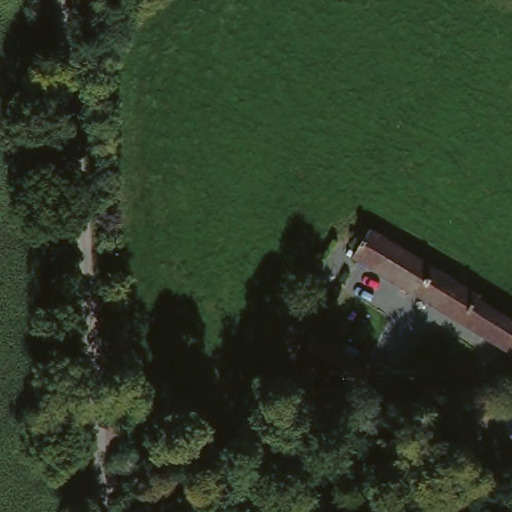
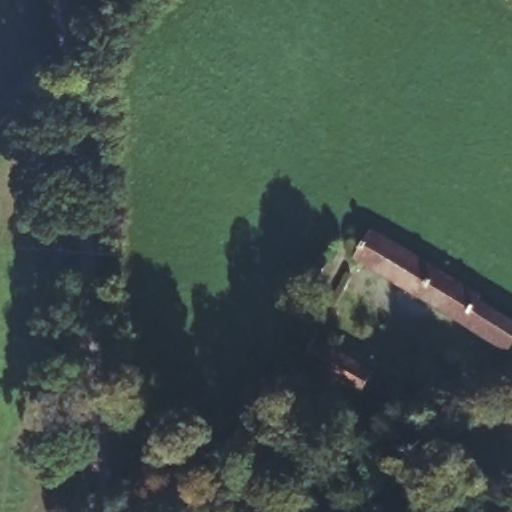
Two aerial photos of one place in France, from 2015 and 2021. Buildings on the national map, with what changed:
unchanged [(374,244),(378,238),(418,261),(492,303),(489,307),(492,309),(512,322),(512,358),(359,269),(365,260),(351,252),(359,237),(374,244)]
unchanged [(377,372),(364,396),(306,366),(318,343),(319,345),(321,341),(377,372)]

